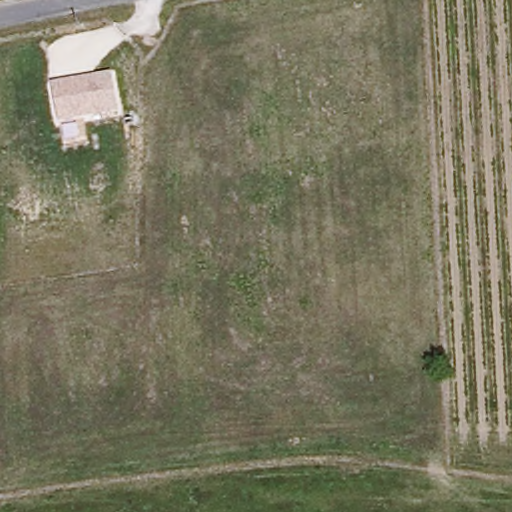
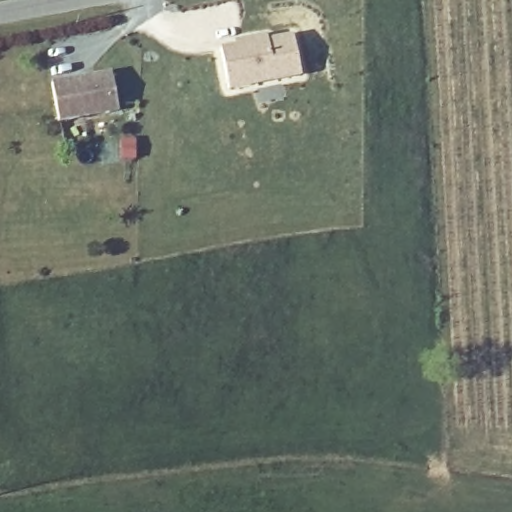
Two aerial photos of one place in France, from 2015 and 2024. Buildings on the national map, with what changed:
new [(302,76),(229,92),(220,49),(234,45),(233,41),(266,34),(267,39),(292,34),(302,76)]
unchanged [(50,82),(112,70),(120,111),(57,122),(50,82)]

